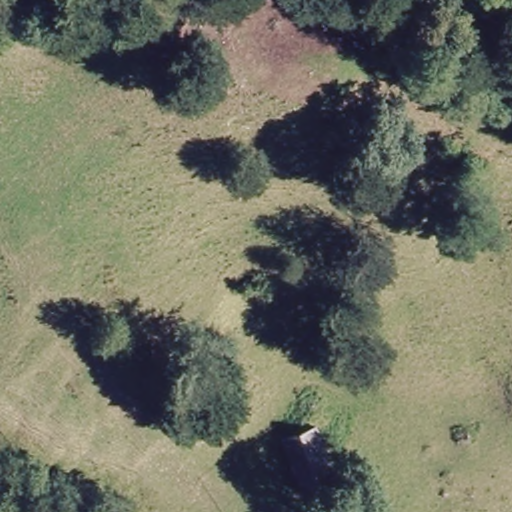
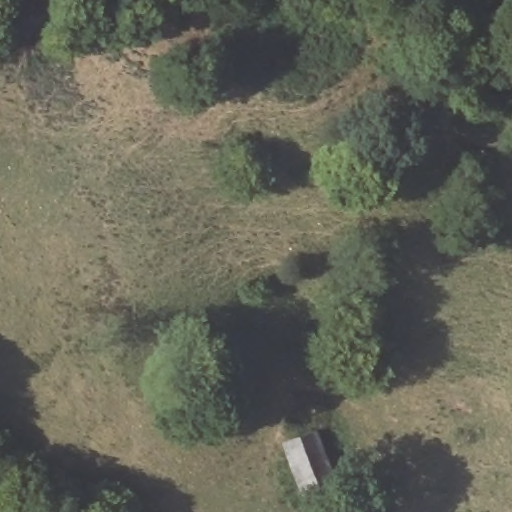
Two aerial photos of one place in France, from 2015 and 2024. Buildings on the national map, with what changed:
unchanged [(337,480),(302,492),(283,442),(317,430),(337,480)]

